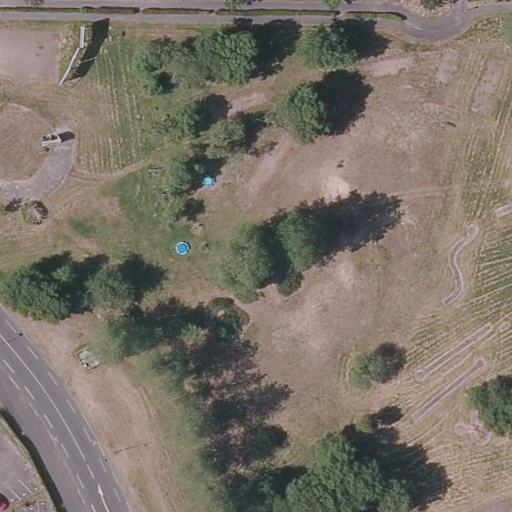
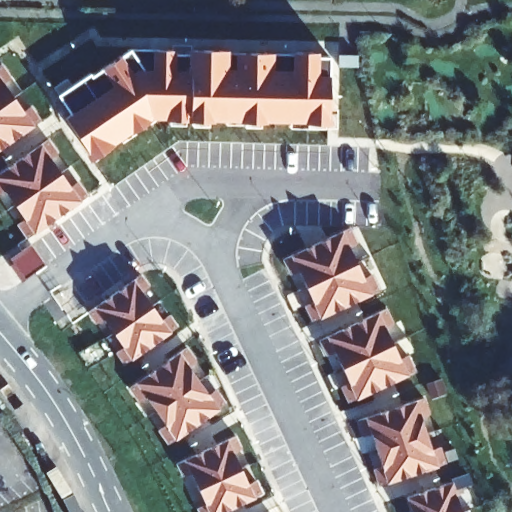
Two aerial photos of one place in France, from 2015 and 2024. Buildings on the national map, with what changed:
new [(65,119),(71,114),(58,95),(89,74),(90,76),(131,49),(317,52),(318,56),(329,56),(329,124),(151,119),(93,159),(65,119)]
new [(358,55),(357,67),(339,67),(339,55),(358,55)]
new [(0,149),(0,65),(10,79),(3,84),(23,111),(30,106),(40,121),(0,149)]
demolished [(3,106),(9,106),(20,110),(32,116),(46,130),(55,144),(41,145),(34,165),(25,175),(14,179),(1,181),(0,181),(0,114),(1,114),(3,106)]
new [(48,140),(58,155),(50,160),(70,187),(77,182),(87,196),(27,239),(17,224),(24,219),(4,191),(0,195),(0,173),(48,140)]
new [(349,228),(357,244),(349,247),(364,278),(371,275),(379,291),(313,321),(304,306),(313,302),(299,271),(291,275),(283,259),(349,228)]
new [(24,280),(10,260),(31,245),(45,265),(24,280)]
new [(141,275),(148,287),(141,292),(161,320),(168,315),(177,327),(124,365),(115,352),(123,347),(103,319),(95,325),(88,312),(141,275)]
new [(386,309),(393,325),(385,328),(399,360),(408,356),(415,371),(349,403),(341,387),(349,383),(334,352),(326,356),(319,340),(386,309)]
new [(154,370),(156,372),(161,368),(160,366),(186,348),(196,362),(188,367),(208,395),(216,390),(226,405),(199,422),(198,420),(193,424),(194,426),(168,445),(158,430),(166,425),(146,397),(138,402),(128,388),(154,370)]
new [(387,410),(388,413),(394,411),(394,408),(424,398),(429,415),(421,418),(431,450),(439,447),(445,464),(416,473),(414,471),(408,473),(409,476),(379,486),(374,469),(381,466),(371,435),(363,437),(357,420),(387,410)]
new [(235,436),(241,450),(233,453),(248,485),(256,481),(261,494),(224,512),(199,512),(197,508),(205,505),(191,473),(183,477),(176,464),(235,436)]
new [(452,482),(461,512),(411,512),(407,497),(452,482)]

